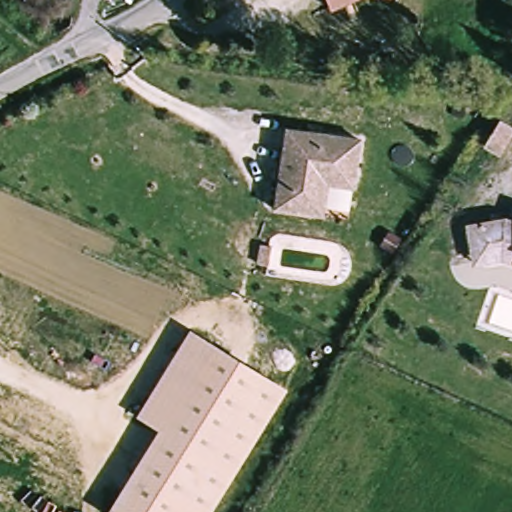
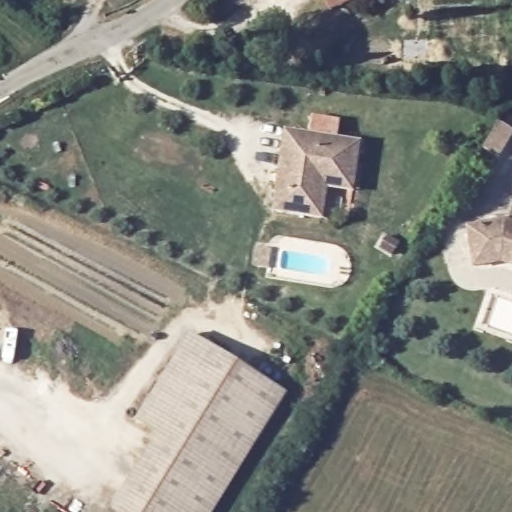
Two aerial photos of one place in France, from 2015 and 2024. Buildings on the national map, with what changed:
unchanged [(327,2),(326,0),(334,0),(327,2)]
unchanged [(384,0),(386,0),(386,1),(384,0)]
unchanged [(500,156),(485,147),(500,122),(512,129),(512,137),(500,156)]
unchanged [(314,212),(276,206),(285,129),(359,139),(354,178),(353,188),(331,185),(327,215),(314,212)]
unchanged [(470,223),(507,217),(512,219),(512,248),(506,245),(475,250),(470,223)]
unchanged [(506,245),(512,248),(512,258),(505,255),(478,260),(475,250),(506,245)]
unchanged [(265,263),(276,264),(273,283),(262,283),(265,263)]
unchanged [(287,397),(211,512),(109,512),(162,431),(141,420),(196,336),(287,397)]

